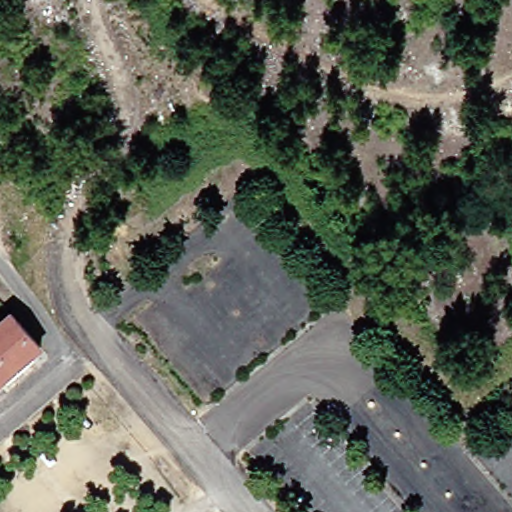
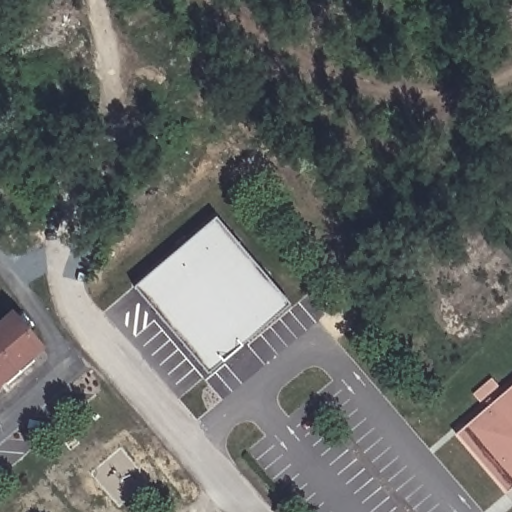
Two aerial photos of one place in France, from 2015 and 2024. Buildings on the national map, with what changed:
new [(216,217),(289,303),(208,372),(134,286),(216,217)]
unchanged [(0,352),(0,323),(10,315),(39,349),(15,370),(0,352)]
unchanged [(15,370),(0,383),(0,352),(15,370)]
new [(455,434),(512,385),(512,488),(507,492),(455,434)]

